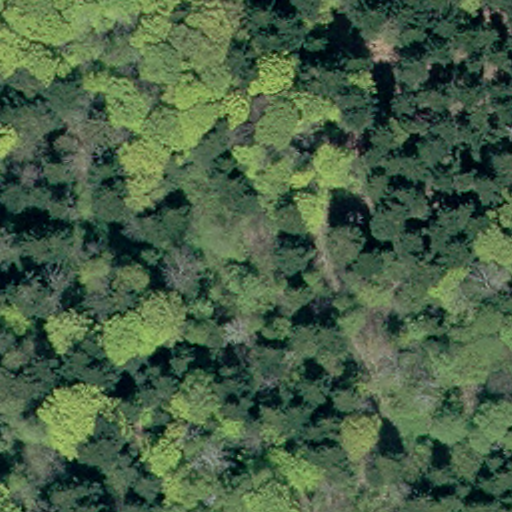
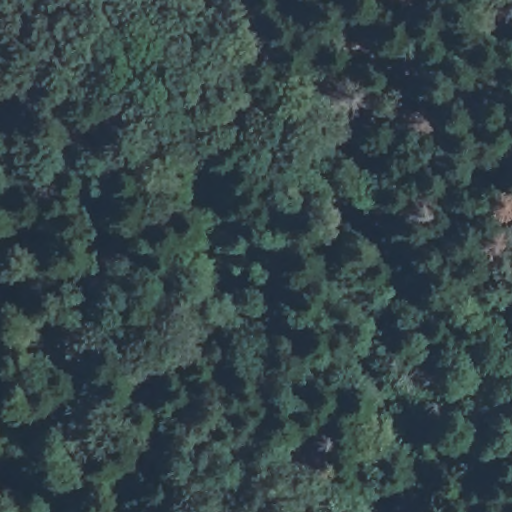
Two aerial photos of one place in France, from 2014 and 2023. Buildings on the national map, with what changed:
[]

